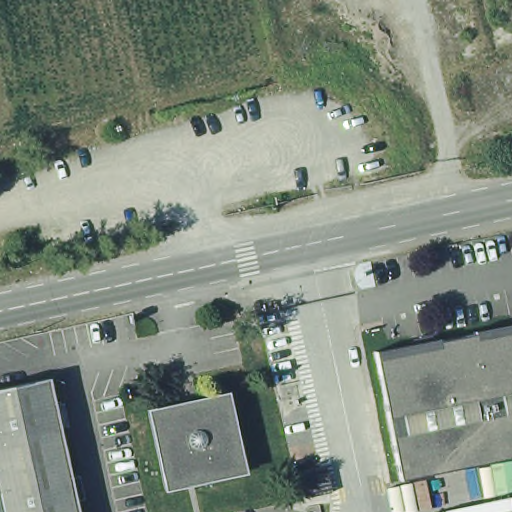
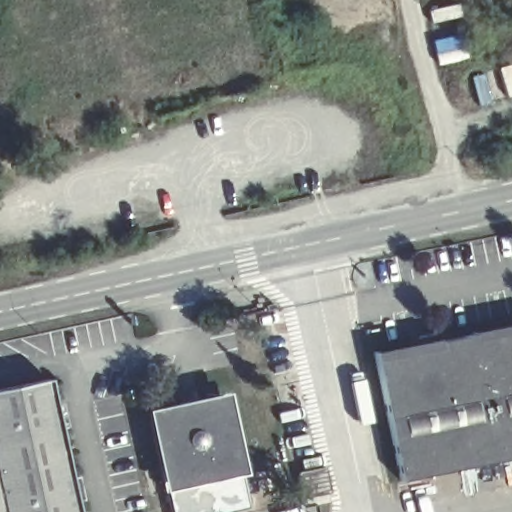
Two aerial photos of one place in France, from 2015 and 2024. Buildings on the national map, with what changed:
unchanged [(383,366),(381,363),(378,344),(512,318),(512,449),(404,470),(383,366)]
unchanged [(50,389),(56,415),(64,414),(70,438),(61,440),(73,488),(81,487),(86,510),(78,512),(0,512),(0,400),(50,389)]
unchanged [(155,412),(226,396),(243,467),(171,483),(155,412)]
unchanged [(324,464),(329,492),(303,497),(297,469),(324,464)]

